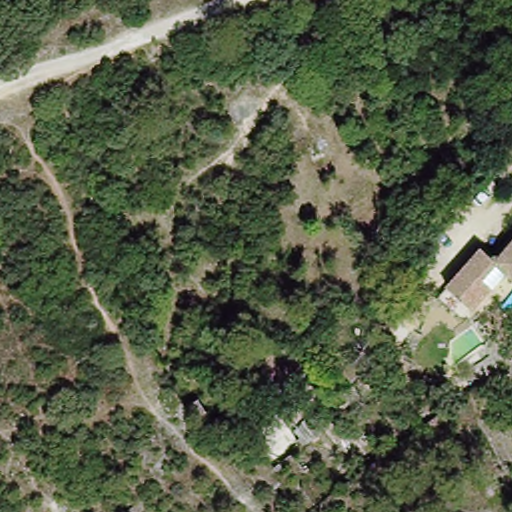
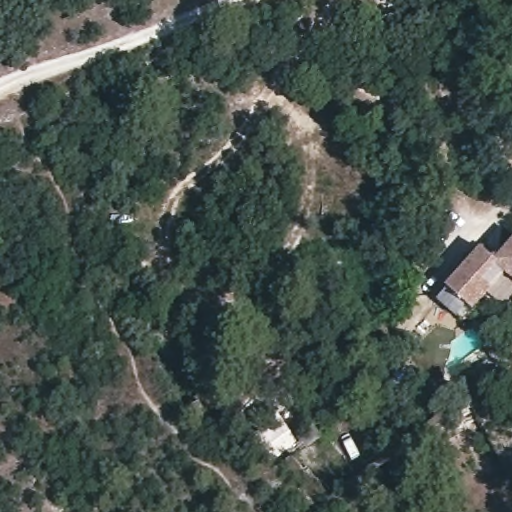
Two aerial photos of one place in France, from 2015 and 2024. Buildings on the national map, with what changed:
unchanged [(512,244),(512,273),(508,270),(475,307),(448,283),(483,244),(499,257),(512,244)]

